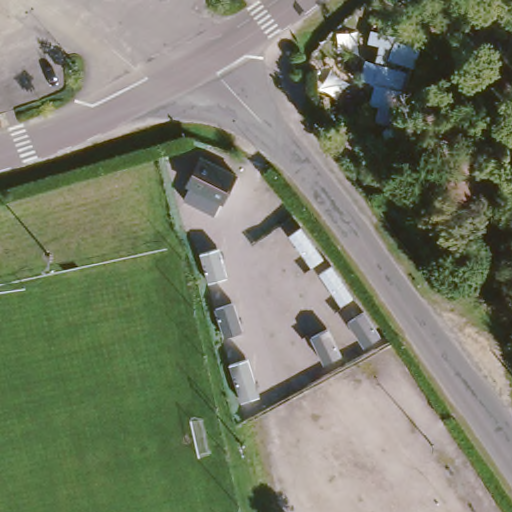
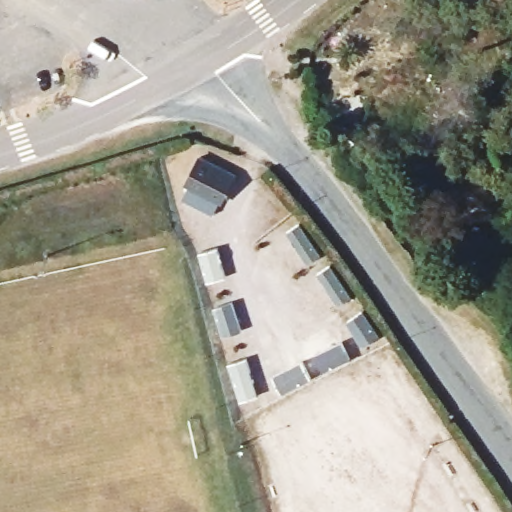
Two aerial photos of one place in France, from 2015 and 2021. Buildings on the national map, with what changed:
unchanged [(388,62),(371,60),(374,44),(365,42),(370,26),(395,35),(388,62)]
unchanged [(199,155),(239,175),(224,204),(184,184),(199,155)]

